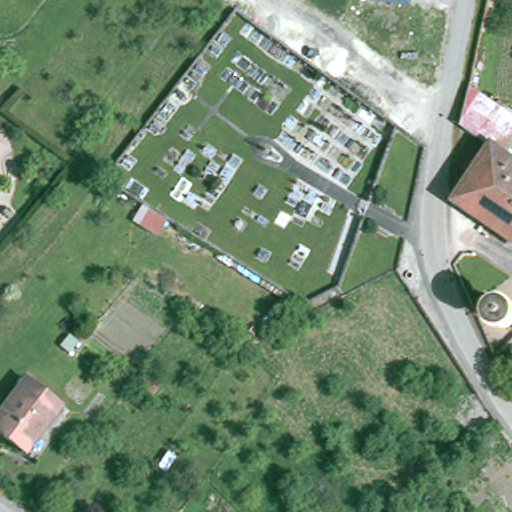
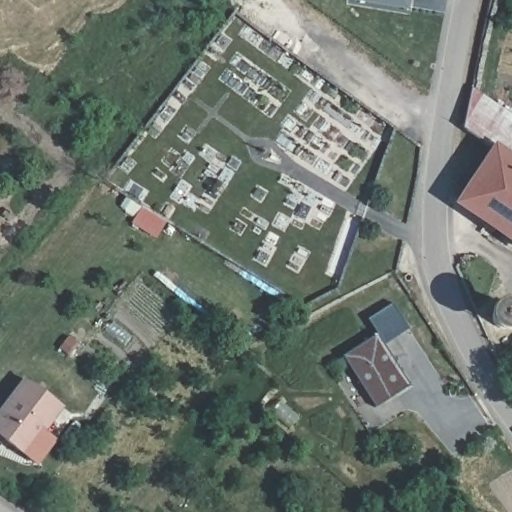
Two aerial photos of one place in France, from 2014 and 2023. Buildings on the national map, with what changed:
unchanged [(355,1),(355,0),(409,0),(407,9),(355,1)]
unchanged [(512,164),(495,153),(464,131),(475,87),(512,113),(512,164)]
unchanged [(512,164),(512,244),(457,207),(495,153),(512,164)]
new [(377,335),(368,320),(394,305),(408,330),(384,344),(410,386),(375,409),(342,356),(377,335)]
unchanged [(135,396),(150,377),(160,386),(145,405),(135,396)]
unchanged [(22,451),(0,434),(0,415),(28,379),(62,406),(45,429),(25,454),(22,451)]

